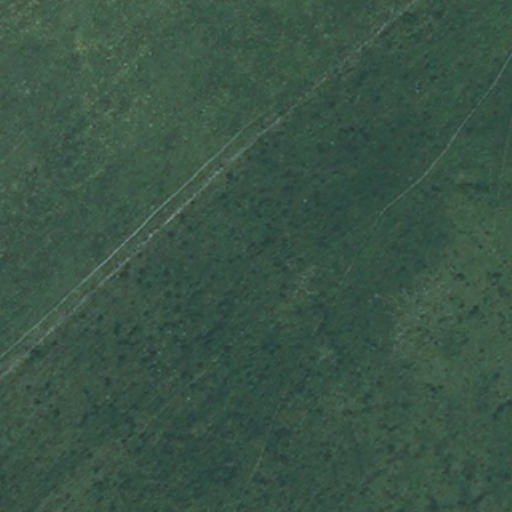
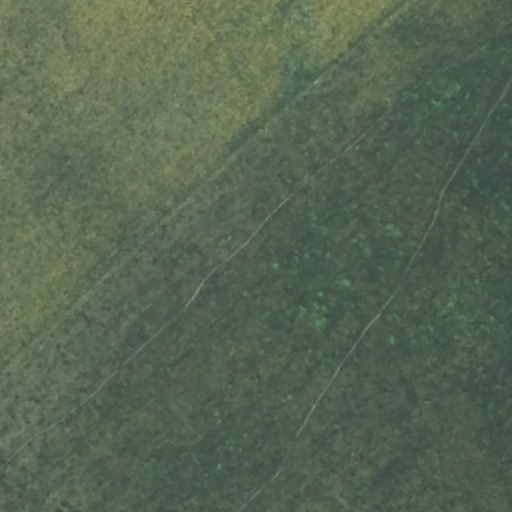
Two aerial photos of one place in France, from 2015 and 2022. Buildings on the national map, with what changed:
[]

